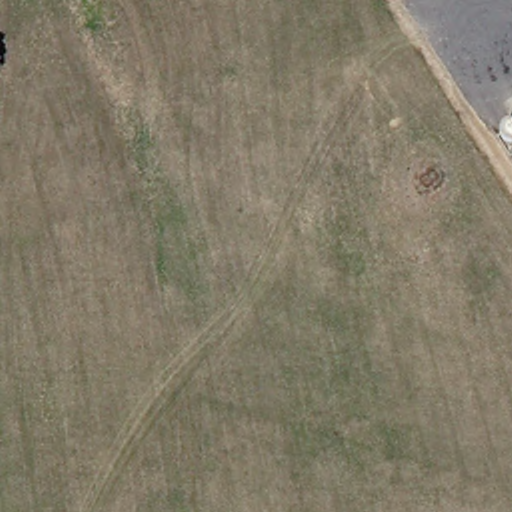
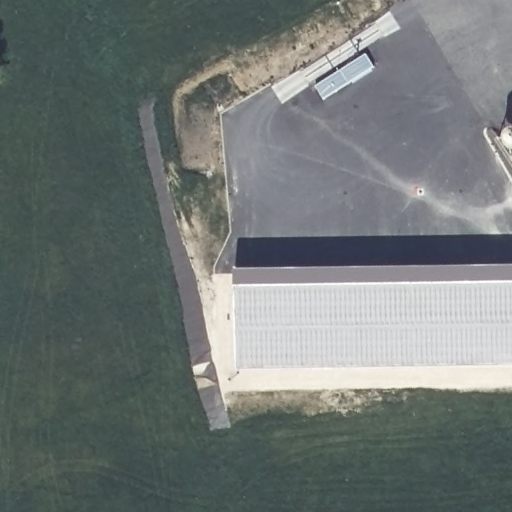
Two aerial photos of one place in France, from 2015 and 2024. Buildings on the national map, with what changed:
demolished [(512,132),(512,151),(503,136),(512,132)]
new [(236,272),(512,267),(512,366),(236,373),(236,272)]

